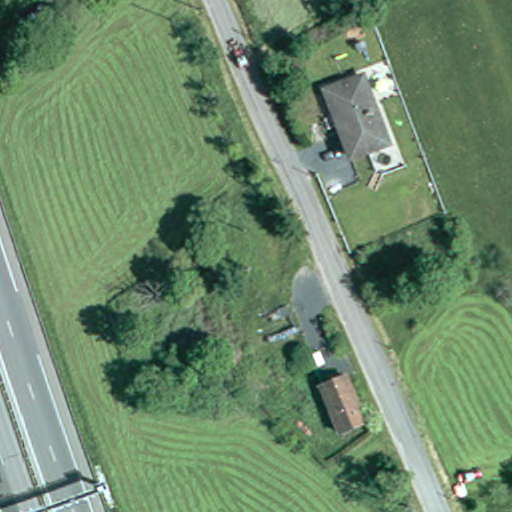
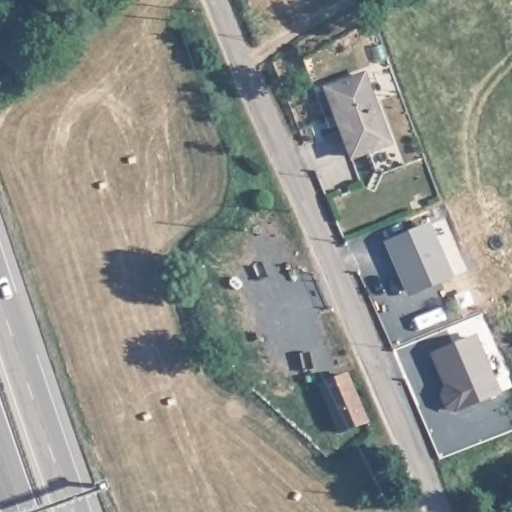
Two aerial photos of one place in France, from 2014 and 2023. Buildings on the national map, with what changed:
unchanged [(388,128),(394,142),(357,156),(352,142),(331,92),(366,77),(388,128)]
new [(450,275),(415,290),(408,288),(403,275),(406,271),(395,239),(429,225),(450,275)]
new [(456,412),(445,408),(440,395),(445,385),(431,352),(477,333),(501,392),(456,412)]
unchanged [(325,387),(349,377),(370,425),(346,435),(325,387)]

